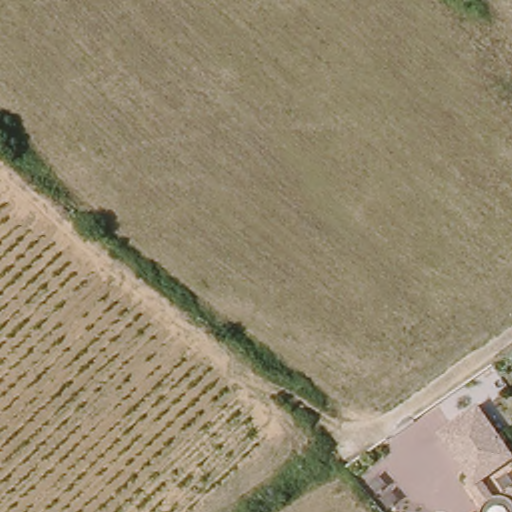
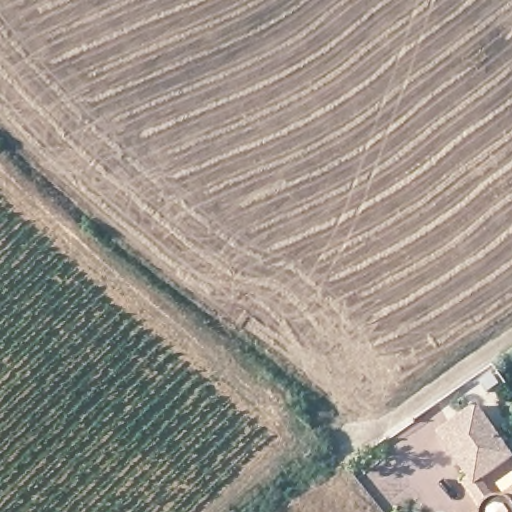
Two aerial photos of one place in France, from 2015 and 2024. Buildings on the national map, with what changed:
unchanged [(474,408),(511,460),(472,488),(436,436),(474,408)]
unchanged [(480,510),(481,509),(482,508),(483,507),(484,507),(485,506),(486,505),(487,504),(488,504),(489,503),(491,503),(492,502),(493,502),(494,502),(496,502),(497,502),(498,502),(499,502),(512,493),(512,512),(479,512),(480,511),(480,510)]

